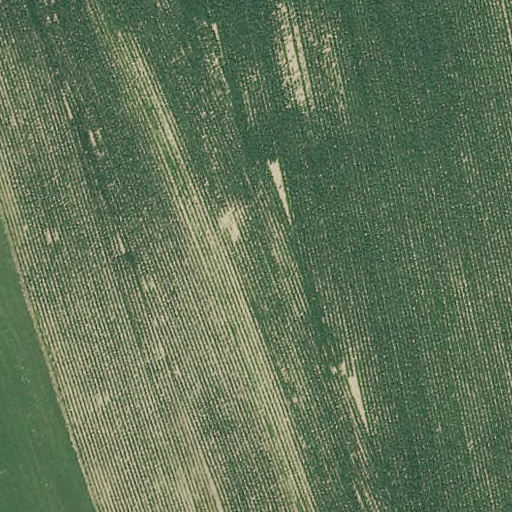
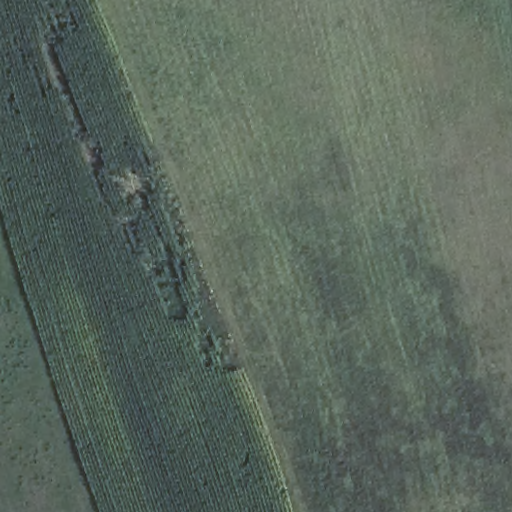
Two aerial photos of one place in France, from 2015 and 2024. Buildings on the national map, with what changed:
[]

